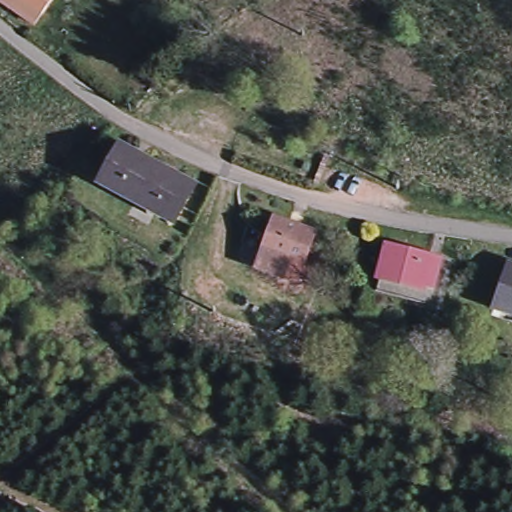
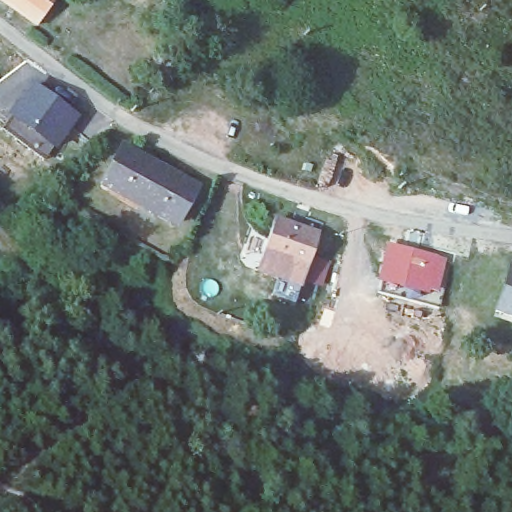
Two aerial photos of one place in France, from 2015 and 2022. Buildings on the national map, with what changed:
unchanged [(10,2),(6,0),(12,0),(10,2)]
unchanged [(37,22),(10,2),(12,0),(52,0),(37,22)]
new [(30,87),(74,118),(53,147),(10,116),(30,87)]
unchanged [(105,188),(125,150),(162,169),(141,207),(105,188)]
unchanged [(196,187),(177,225),(141,207),(162,169),(196,187)]
unchanged [(290,285),(247,270),(252,256),(264,221),(306,236),(295,271),(290,285)]
unchanged [(377,267),(384,237),(444,252),(434,299),(412,293),(374,285),(377,267)]
unchanged [(512,266),(512,316),(495,310),(511,266),(512,266)]

